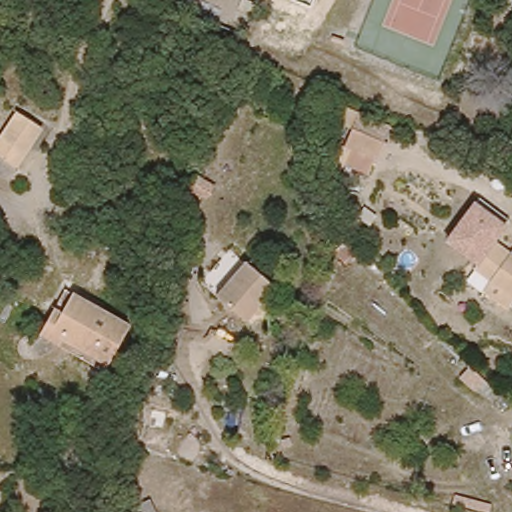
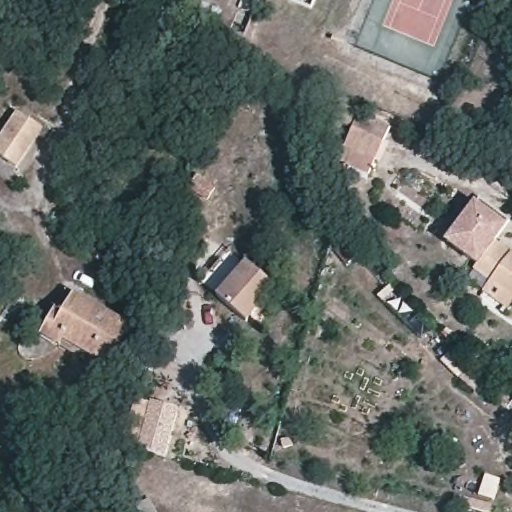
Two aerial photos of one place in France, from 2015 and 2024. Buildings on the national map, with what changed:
unchanged [(17,110),(48,130),(20,169),(0,155),(0,140),(17,110)]
unchanged [(384,140),(364,188),(341,178),(345,167),(337,163),(352,127),(384,140)]
unchanged [(499,238),(512,248),(512,304),(488,291),(493,279),(478,270),(483,261),(448,244),(474,200),(509,221),(499,238)]
unchanged [(214,305),(240,272),(271,293),(245,329),(214,305)]
unchanged [(111,376),(39,349),(58,303),(130,330),(111,376)]
unchanged [(500,382),(491,393),(474,379),(482,368),(500,382)]
new [(166,458),(138,451),(149,402),(178,408),(166,458)]

